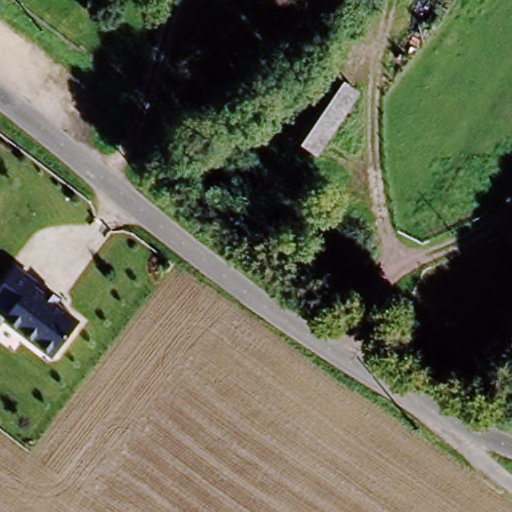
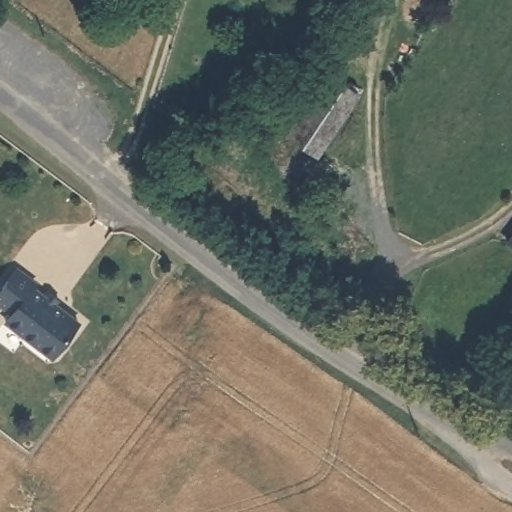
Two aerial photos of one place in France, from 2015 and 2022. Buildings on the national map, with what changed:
unchanged [(360,94),(316,156),(281,136),(327,69),(360,94)]
unchanged [(512,229),(512,247),(504,240),(512,229)]
unchanged [(37,287),(35,289),(45,299),(47,299),(80,327),(48,365),(2,326),(4,323),(0,319),(0,285),(14,270),(37,287)]

